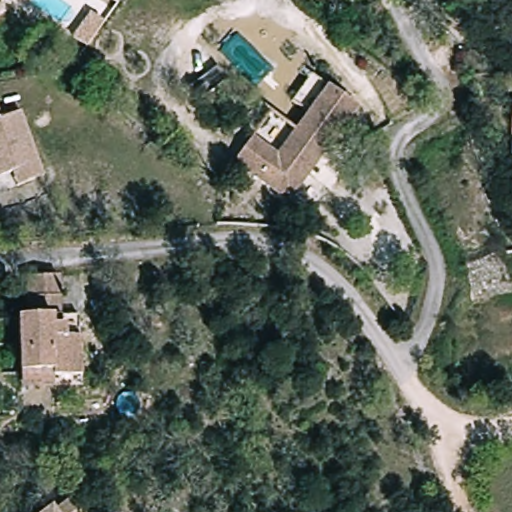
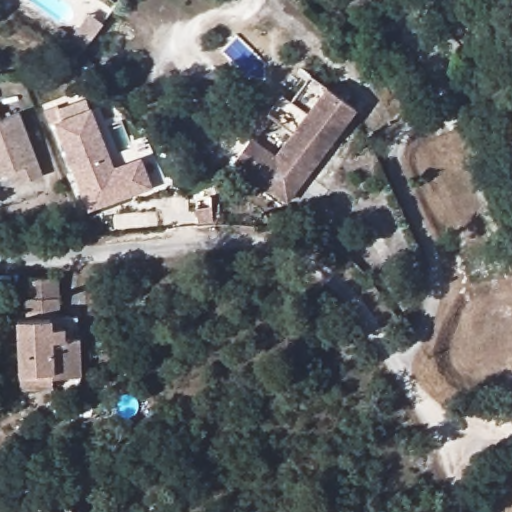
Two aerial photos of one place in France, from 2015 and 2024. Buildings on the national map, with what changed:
unchanged [(193,86),(214,69),(226,83),(203,100),(193,86)]
unchanged [(316,106),(328,87),(357,105),(343,126),(293,202),(236,164),(252,141),(280,160),(316,106)]
new [(115,166),(142,156),(152,182),(92,205),(59,119),(52,121),(47,106),(58,102),(63,116),(92,105),(115,166)]
unchanged [(15,190),(8,177),(0,180),(0,121),(15,113),(37,164),(44,178),(15,190)]
new [(197,206),(213,206),(212,219),(197,220),(197,206)]
unchanged [(16,392),(17,374),(18,322),(32,322),(32,282),(66,283),(65,322),(77,322),(75,384),(48,384),(48,394),(16,392)]
unchanged [(72,505),(77,512),(61,512),(72,505)]

